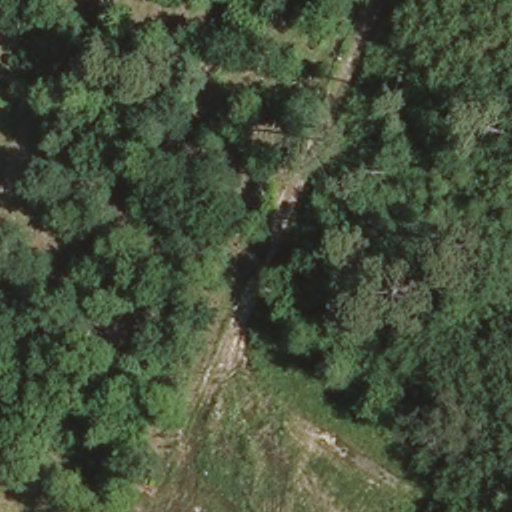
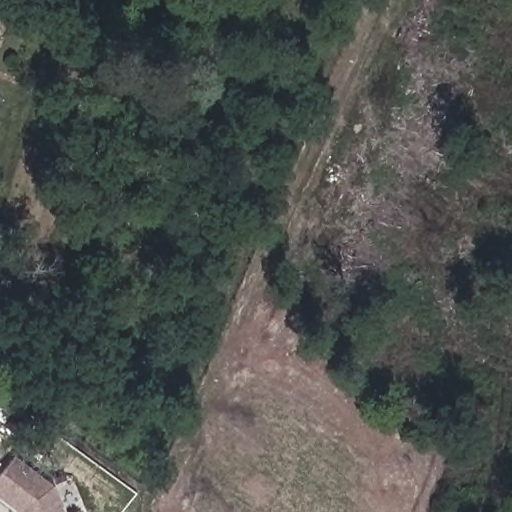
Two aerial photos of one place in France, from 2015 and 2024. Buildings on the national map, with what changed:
new [(16,453),(54,485),(65,512),(20,512),(20,511),(0,496),(0,475),(16,453)]

